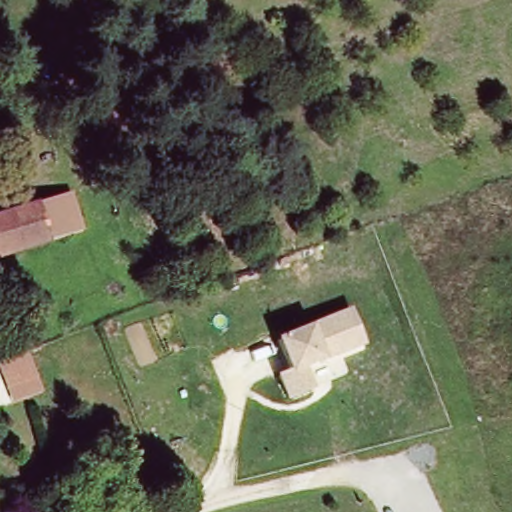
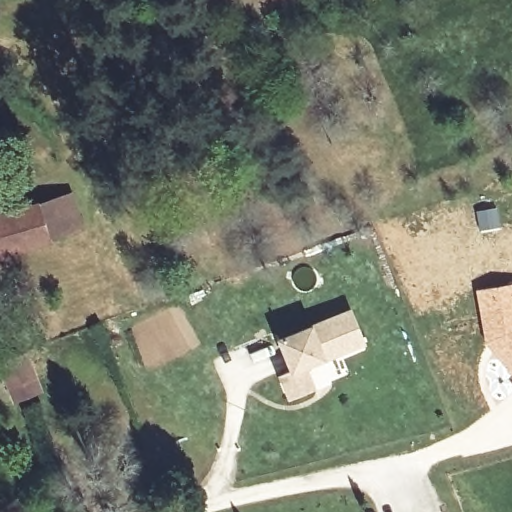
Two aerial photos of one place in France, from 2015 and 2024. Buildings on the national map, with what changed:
unchanged [(21,208),(79,189),(92,229),(36,248),(21,208)]
unchanged [(21,208),(36,248),(0,260),(0,215),(21,208)]
new [(480,291),(512,286),(512,371),(487,343),(480,291)]
unchanged [(330,363),(311,371),(318,391),(289,403),(279,376),(290,372),(278,340),(315,326),(355,308),(369,347),(330,363)]
unchanged [(41,392),(12,403),(0,369),(0,358),(24,348),(41,392)]

